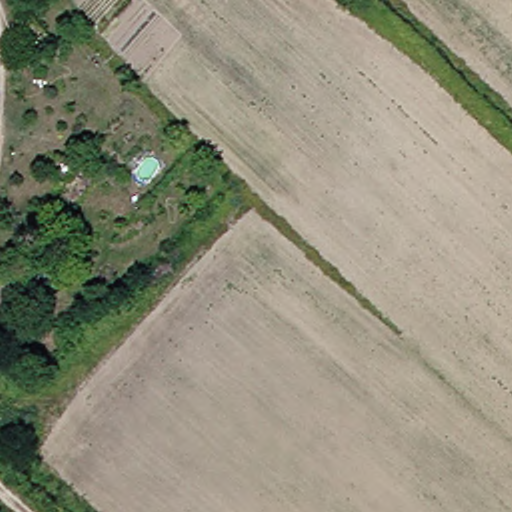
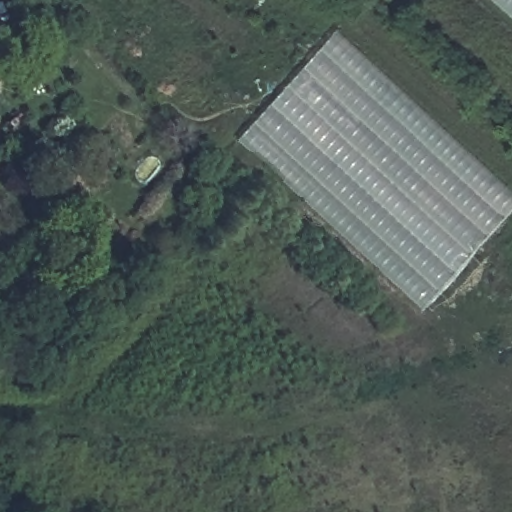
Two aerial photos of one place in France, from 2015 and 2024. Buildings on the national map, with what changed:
new [(512,0),(512,18),(492,0),(512,0)]
unchanged [(39,52),(14,24),(23,16),(49,44),(39,52)]
new [(422,312),(238,142),(339,30),(512,191),(512,213),(422,312)]
unchanged [(0,279),(0,265),(6,272),(0,279)]

